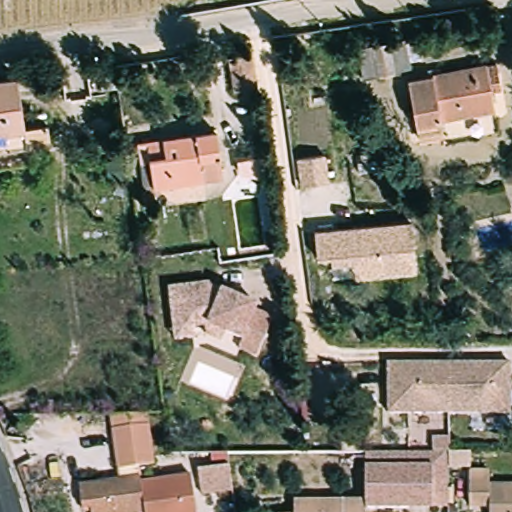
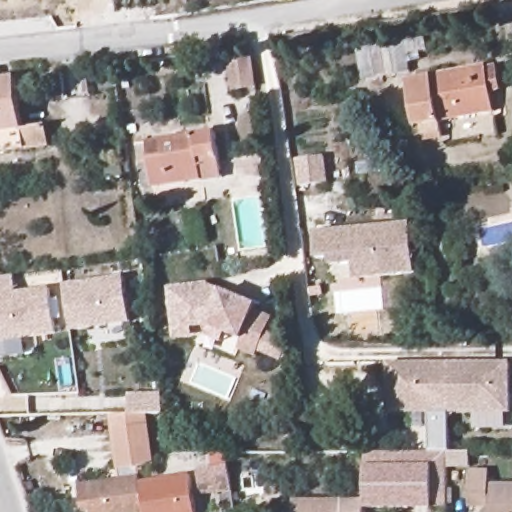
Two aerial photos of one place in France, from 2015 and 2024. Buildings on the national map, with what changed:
unchanged [(370,74),(366,42),(406,37),(431,34),(432,44),(407,46),(410,69),(370,74)]
unchanged [(256,83),(236,86),(231,55),(252,52),(256,83)]
unchanged [(440,116),(442,127),(417,130),(411,75),(485,64),(501,62),(504,85),(489,87),(493,109),(440,116)]
unchanged [(0,150),(0,78),(22,76),(28,126),(48,122),(50,144),(0,150)]
unchanged [(135,140),(148,137),(220,127),(225,158),(204,162),(209,187),(157,196),(143,197),(135,140)]
unchanged [(298,162),(326,159),(329,184),(301,188),(298,162)]
unchanged [(269,182),(242,177),(241,166),(267,162),(269,182)]
unchanged [(411,223),(415,276),(356,281),(354,266),(332,267),(331,260),(318,261),(316,232),(411,223)]
new [(50,287),(57,336),(0,342),(0,278),(15,276),(17,292),(50,287)]
new [(125,280),(132,324),(72,333),(65,288),(125,280)]
unchanged [(210,280),(211,282),(259,301),(257,305),(275,312),(260,352),(210,332),(178,337),(171,286),(210,280)]
unchanged [(444,363),(511,365),(510,415),(449,413),(387,412),(389,362),(444,363)]
unchanged [(155,463),(120,467),(112,412),(148,412),(155,463)]
unchanged [(431,477),(431,505),(365,505),(365,497),(364,447),(449,447),(448,477),(431,477)]
unchanged [(209,470),(195,470),(195,458),(239,458),(240,484),(210,485),(209,470)]
unchanged [(472,467),(493,467),(494,482),(512,483),(512,512),(493,512),(493,502),(472,502),(472,467)]
unchanged [(82,505),(80,482),(146,478),(147,485),(195,482),(198,512),(94,512),(93,505),(82,505)]
unchanged [(365,497),(365,505),(366,512),(295,512),(294,497),(365,497)]

